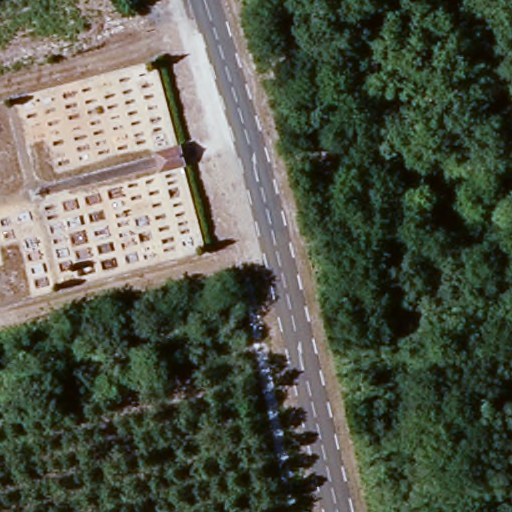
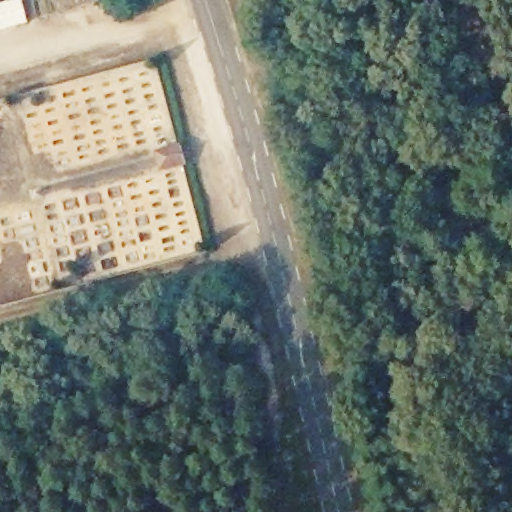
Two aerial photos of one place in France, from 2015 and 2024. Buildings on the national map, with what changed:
new [(0,5),(18,0),(22,0),(28,24),(0,31),(0,5)]

